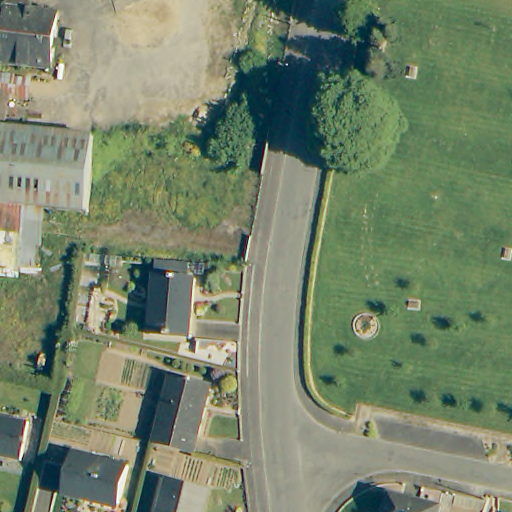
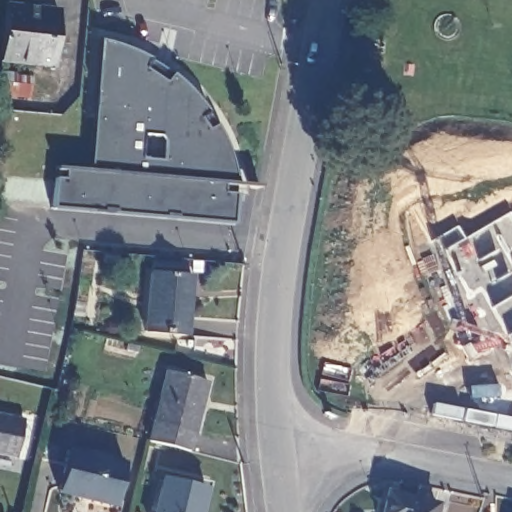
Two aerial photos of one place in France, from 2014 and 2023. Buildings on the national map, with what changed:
unchanged [(52,12),(47,68),(0,64),(0,2),(7,0),(17,0),(20,1),(29,9),(52,12)]
new [(56,167),(90,169),(94,106),(95,106),(96,94),(95,94),(100,40),(122,46),(150,58),(172,74),(192,91),(208,112),(215,125),(232,166),(236,185),(235,194),(233,224),(52,209),(56,167)]
unchanged [(21,94),(2,91),(0,91),(0,77),(23,79),(21,94)]
demolished [(0,99),(0,91),(2,91),(2,99),(1,111),(0,126),(0,99)]
demolished [(81,212),(36,208),(35,207),(0,204),(0,126),(89,136),(89,142),(81,212)]
unchanged [(191,274),(185,333),(145,329),(151,269),(191,274)]
unchanged [(186,447),(150,438),(167,369),(209,381),(190,448),(186,447)]
unchanged [(16,457),(0,453),(0,413),(24,418),(16,457)]
unchanged [(82,493),(81,497),(60,491),(71,449),(124,461),(114,501),(82,493)]
unchanged [(169,478),(209,489),(203,512),(159,512),(169,478)]
unchanged [(400,495),(437,506),(435,512),(390,512),(383,511),(388,492),(400,495)]

